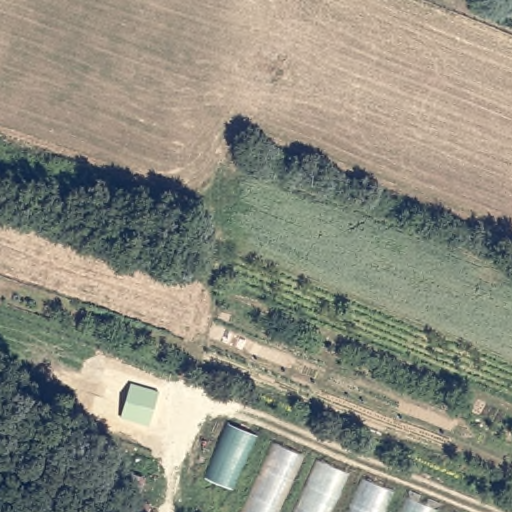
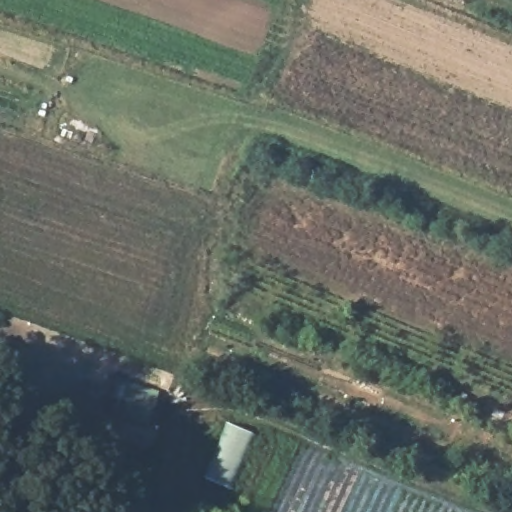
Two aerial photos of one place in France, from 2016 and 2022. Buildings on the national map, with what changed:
demolished [(453,512),(236,512),(268,438),(453,512)]

